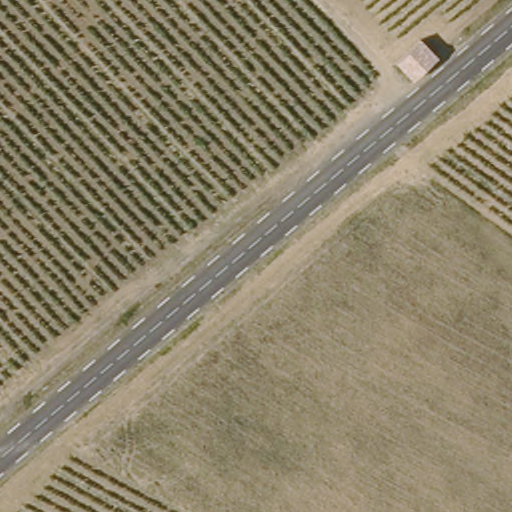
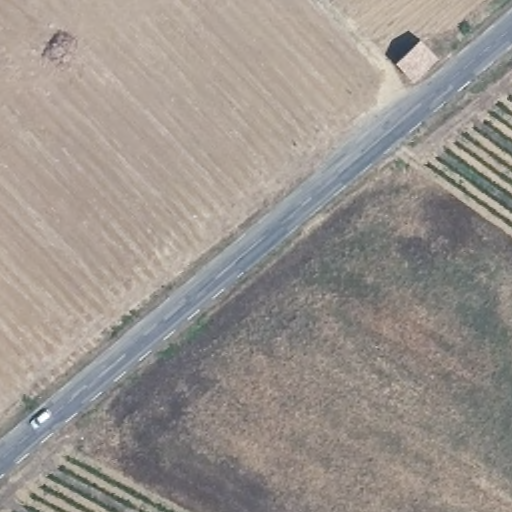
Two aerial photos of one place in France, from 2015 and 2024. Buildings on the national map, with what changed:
unchanged [(439,60),(411,84),(395,66),(422,41),(439,60)]

